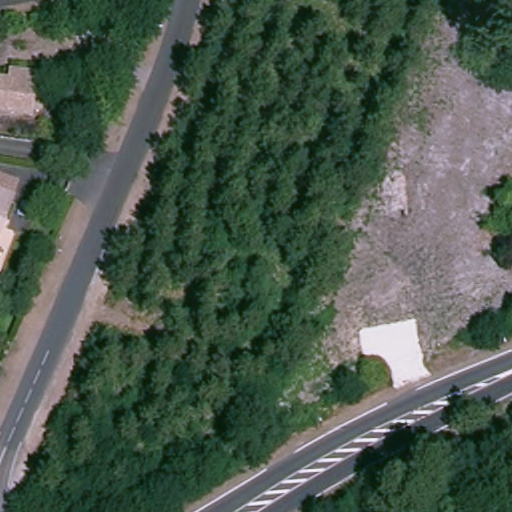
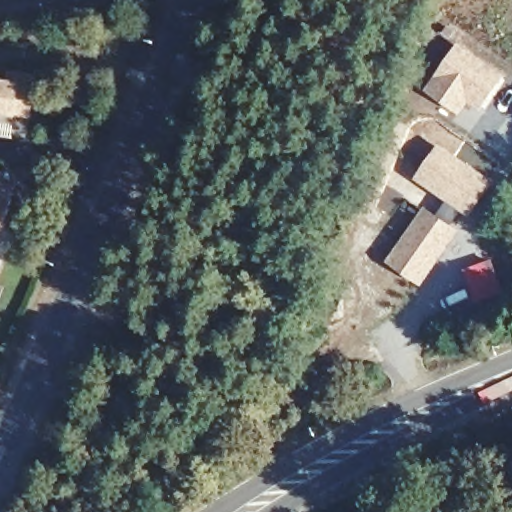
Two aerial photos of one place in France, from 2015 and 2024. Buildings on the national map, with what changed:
new [(458,51),(498,79),(479,107),(467,99),(458,112),(430,92),(438,79),(458,51)]
unchanged [(36,111),(22,109),(0,105),(0,75),(16,77),(17,68),(34,71),(42,72),(36,111)]
new [(494,182),(470,216),(460,210),(452,223),(461,229),(423,286),(386,263),(424,205),(437,214),(445,200),(415,179),(440,143),(494,182)]
demolished [(420,201),(404,207),(392,174),(408,169),(420,201)]
unchanged [(0,229),(0,179),(15,184),(8,201),(10,202),(0,229)]
new [(489,259),(501,292),(476,300),(465,268),(489,259)]
demolished [(395,265),(405,291),(362,307),(353,280),(395,265)]

